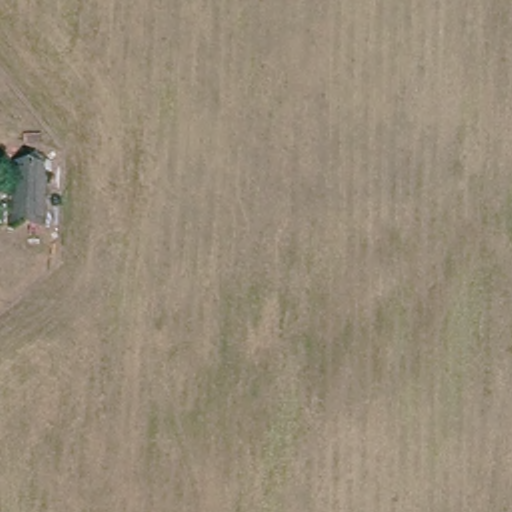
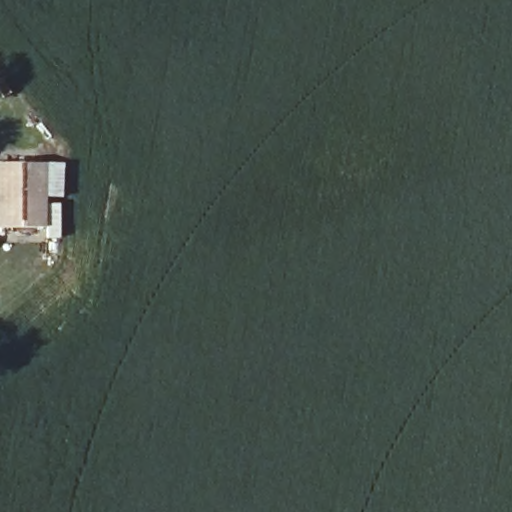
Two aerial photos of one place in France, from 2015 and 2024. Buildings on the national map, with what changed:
demolished [(5,229),(9,177),(13,169),(19,163),(27,160),(34,160),(40,162),(45,165),(49,172),(44,231),(5,229)]
new [(64,197),(47,197),(48,227),(0,228),(0,161),(65,162),(64,197)]

